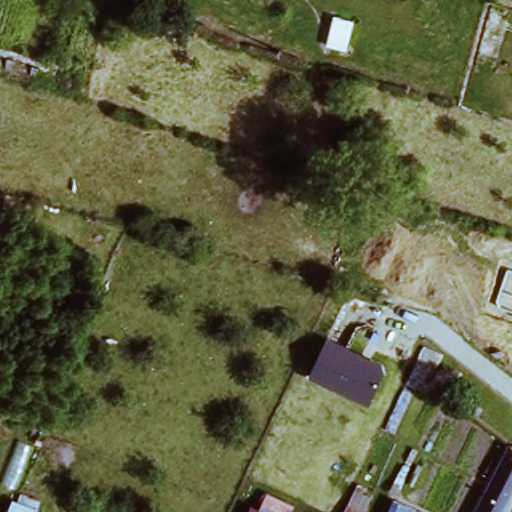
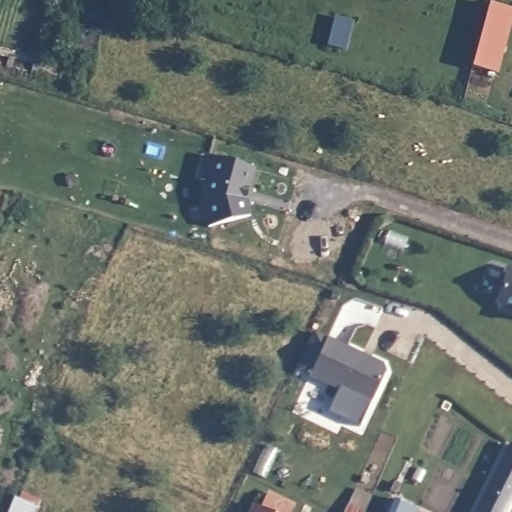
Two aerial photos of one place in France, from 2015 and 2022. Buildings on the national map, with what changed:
new [(512,11),(512,21),(498,77),(472,70),(490,5),(512,11)]
unchanged [(334,13),(350,19),(347,49),(325,46),(334,13)]
new [(255,170),(247,201),(253,218),(207,229),(199,205),(207,184),(199,181),(207,157),(255,170)]
new [(512,270),(512,315),(493,307),(507,268),(512,270)]
unchanged [(310,379),(327,339),(381,362),(385,372),(370,406),(310,379)]
unchanged [(471,512),(510,444),(512,445),(512,501),(506,512),(471,512)]
unchanged [(39,503),(36,512),(9,512),(18,491),(39,503)]
new [(293,512),(249,512),(252,505),(260,509),(269,492),(296,506),(293,512)]
unchanged [(405,512),(392,512),(395,507),(405,512)]

